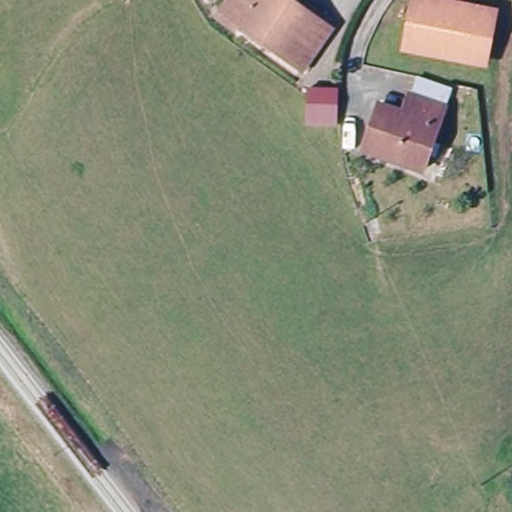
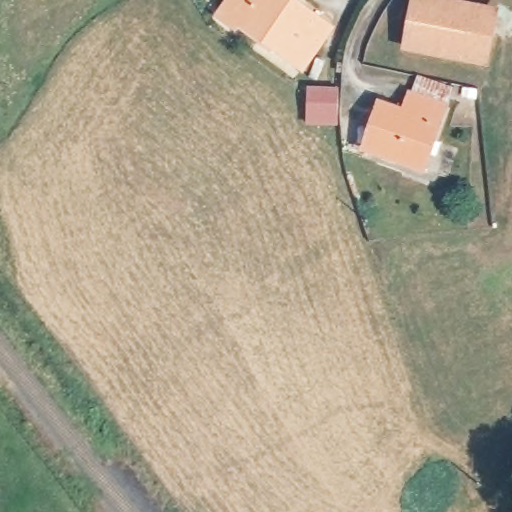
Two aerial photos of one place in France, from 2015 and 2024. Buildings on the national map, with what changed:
unchanged [(235,34),(216,19),(231,0),(281,0),(327,37),(299,72),(265,45),(259,52),(235,34)]
unchanged [(412,0),(417,0),(489,13),(482,65),(406,52),(412,0)]
unchanged [(364,152),(378,111),(405,121),(411,103),(417,84),(445,94),(439,112),(419,172),(364,152)]
unchanged [(309,90),(337,94),(336,127),(307,124),(308,102),(309,90)]

